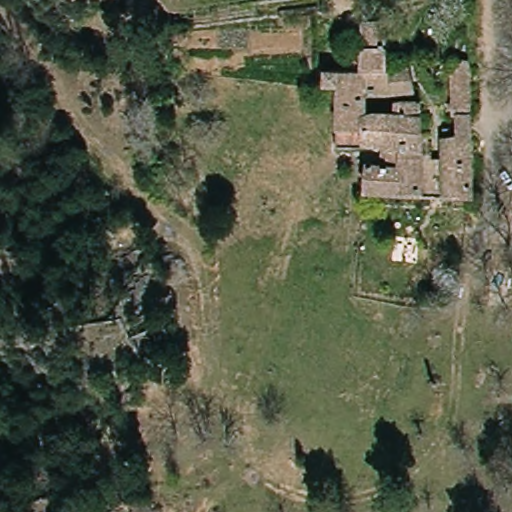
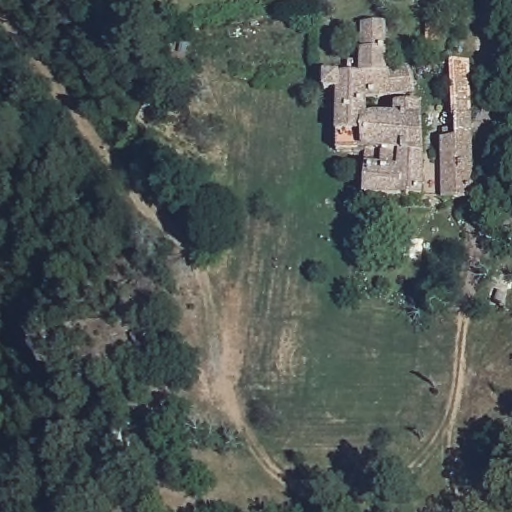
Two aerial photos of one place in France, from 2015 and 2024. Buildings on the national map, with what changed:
unchanged [(420,205),(362,202),(361,172),(375,172),(374,157),(332,159),(334,98),(328,96),(332,55),(360,58),(360,31),(383,33),(385,67),(386,74),(406,75),(417,109),(420,205)]
unchanged [(451,121),(452,103),(454,84),(453,75),(454,66),(475,68),(475,85),(474,104),(473,123),(451,121)]
unchanged [(469,203),(469,204),(438,205),(441,139),(472,140),(469,203)]

